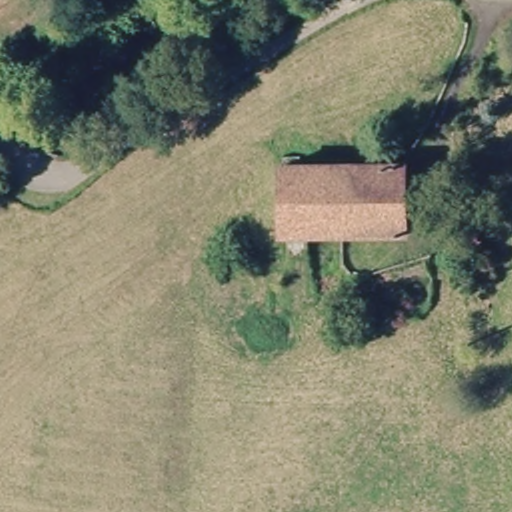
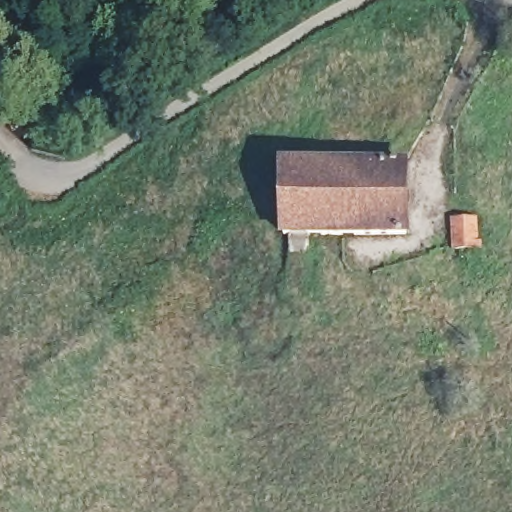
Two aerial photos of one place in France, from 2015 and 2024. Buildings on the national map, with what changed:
unchanged [(287,240),(286,169),(405,165),(406,237),(287,240)]
unchanged [(474,230),(482,231),(483,262),(464,263),(460,232),(474,230)]

